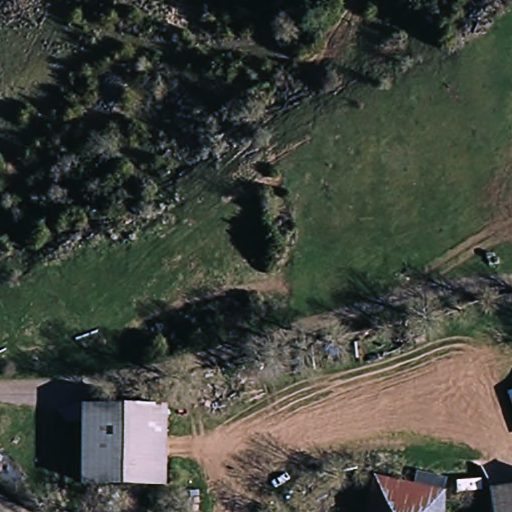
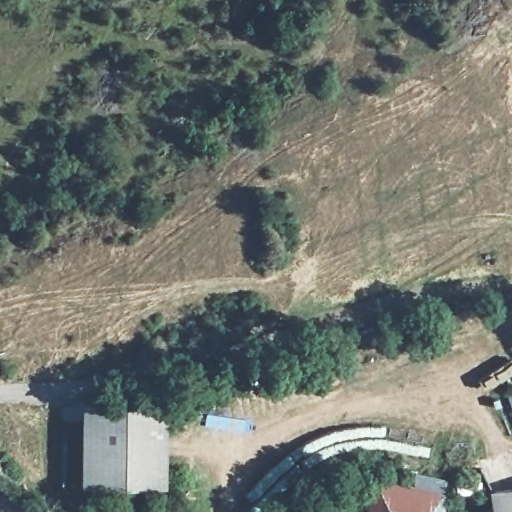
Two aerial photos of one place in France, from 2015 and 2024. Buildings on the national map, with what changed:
unchanged [(512,394),(512,419),(503,397),(512,394)]
unchanged [(78,408),(166,408),(165,492),(78,491),(78,408)]
unchanged [(0,480),(0,432),(39,465),(15,493),(0,480)]
unchanged [(371,479),(412,486),(414,473),(447,481),(444,494),(444,512),(365,512),(371,479)]
unchanged [(486,493),(512,488),(512,512),(488,512),(486,493)]

